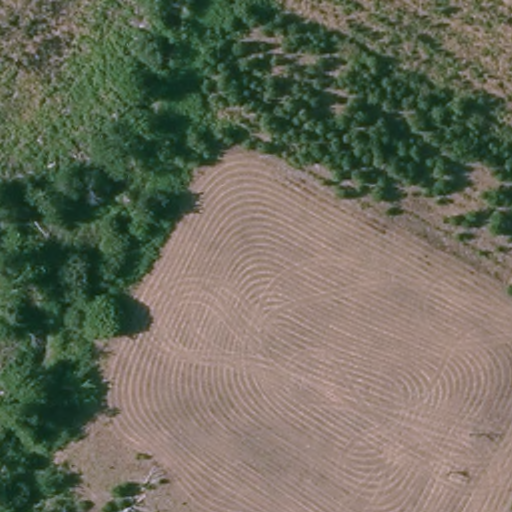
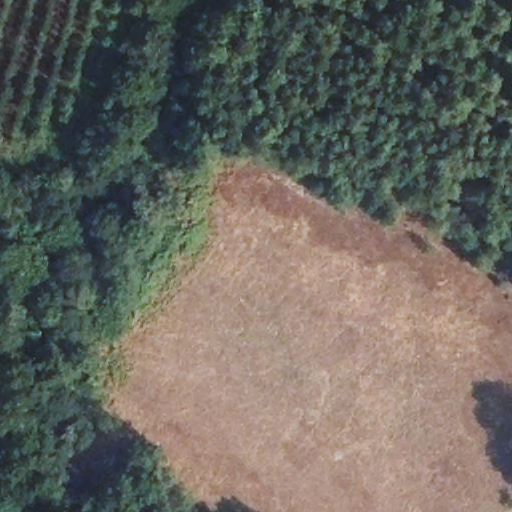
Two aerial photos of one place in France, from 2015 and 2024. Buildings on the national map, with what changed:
[]

